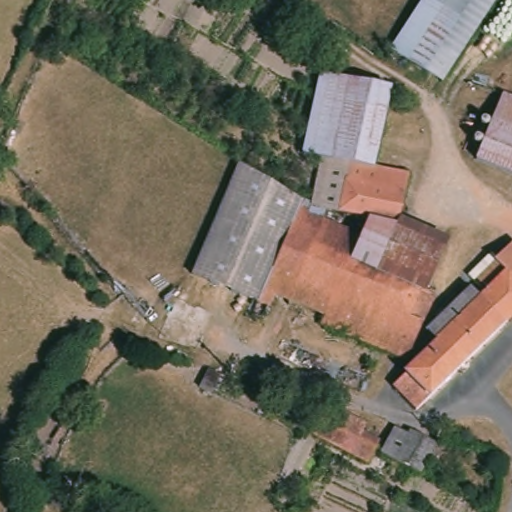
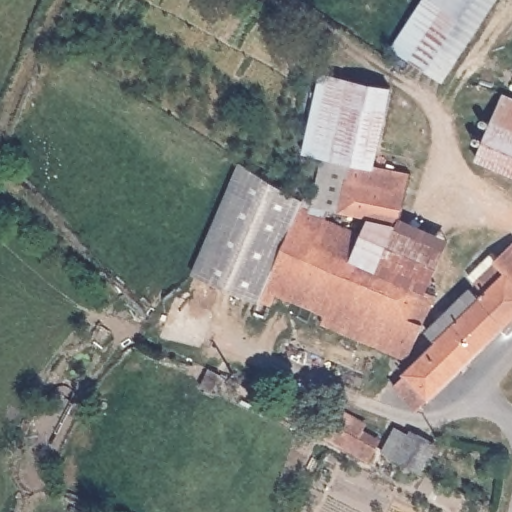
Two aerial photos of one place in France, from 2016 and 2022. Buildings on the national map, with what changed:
unchanged [(417,66),(392,49),(423,0),(496,0),(450,71),(442,84),(417,66)]
unchanged [(391,87),(376,151),(373,166),(319,157),(302,154),(317,84),(320,72),(391,87)]
unchanged [(503,93),(512,97),(512,174),(477,159),(503,93)]
unchanged [(400,220),(399,224),(377,219),(341,210),(310,200),(315,176),(319,157),(373,166),(376,151),(414,159),(400,220)]
unchanged [(302,199),(310,200),(341,210),(337,220),(363,246),(357,259),(425,290),(435,295),(407,360),(320,323),(324,314),(275,294),(270,305),(259,301),(193,272),(238,161),(302,199)]
unchanged [(377,219),(399,224),(400,220),(446,239),(448,240),(425,290),(357,259),(363,246),(377,219)]
unchanged [(392,385),(406,373),(404,371),(436,341),(427,330),(471,287),(481,298),(485,293),(483,291),(474,282),(498,258),(512,245),(512,318),(505,324),(416,410),(392,385)]
unchanged [(199,386),(208,368),(220,374),(211,392),(199,386)]
unchanged [(368,463),(310,432),(312,427),(269,407),(276,393),(338,427),(374,450),(368,463)]
unchanged [(394,427),(408,435),(410,430),(435,444),(420,472),(381,452),(394,427)]

